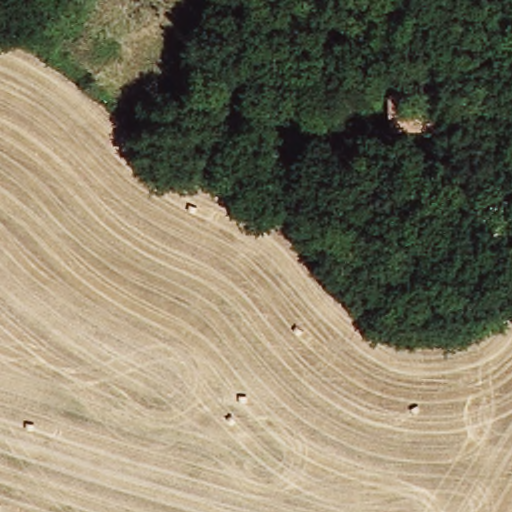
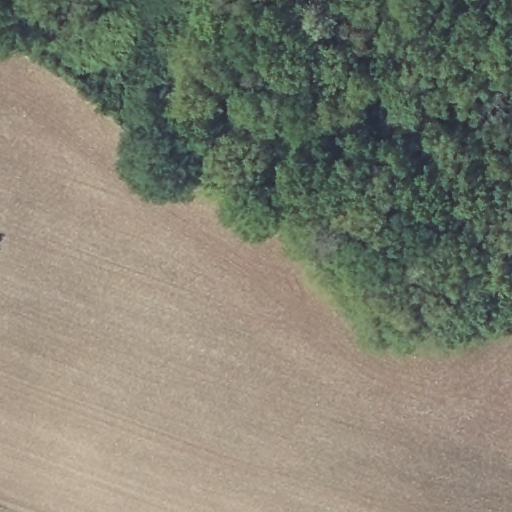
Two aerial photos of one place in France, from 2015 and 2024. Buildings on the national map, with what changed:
unchanged [(440,95),(438,132),(393,133),(391,94),(440,95)]

